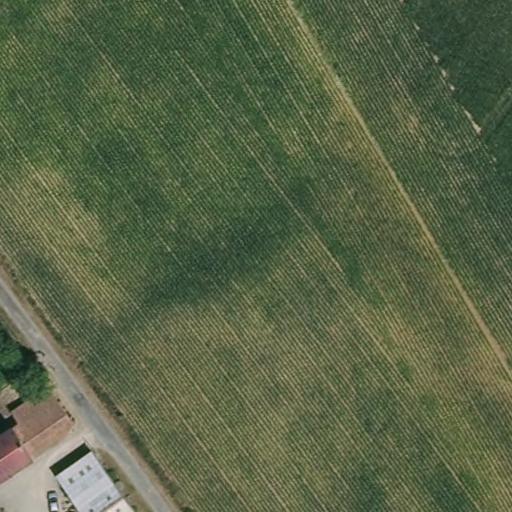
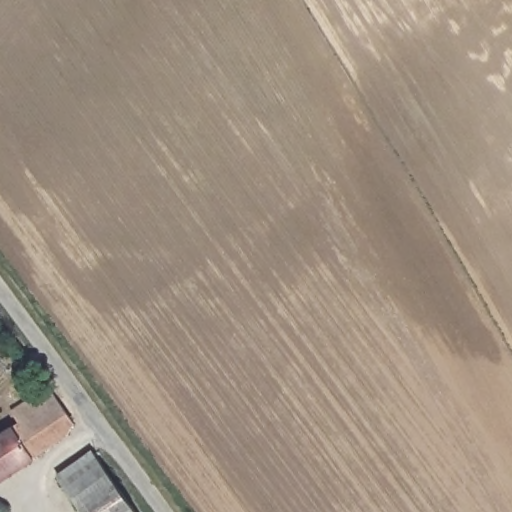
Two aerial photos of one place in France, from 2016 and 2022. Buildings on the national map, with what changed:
unchanged [(0,433),(18,420),(13,411),(48,382),(78,426),(0,487),(0,433)]
unchanged [(63,476),(96,452),(139,512),(90,512),(63,476)]

